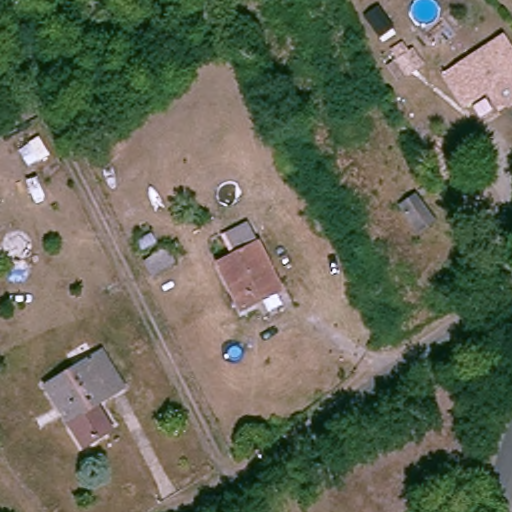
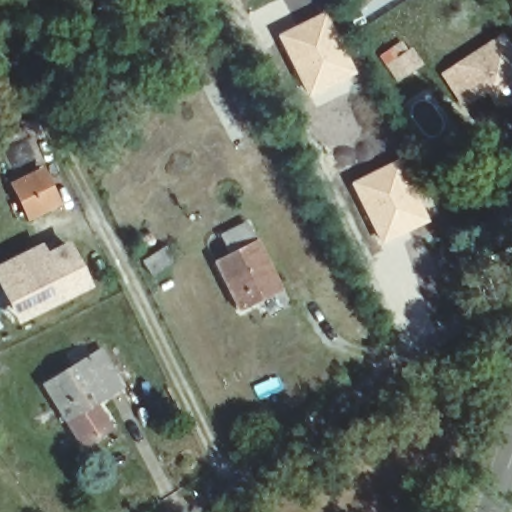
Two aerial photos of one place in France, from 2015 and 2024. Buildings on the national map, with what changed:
new [(326,11),(357,75),(307,99),(275,35),(326,11)]
unchanged [(505,93),(498,81),(470,97),(449,67),(504,31),(512,43),(512,100),(510,101),(505,93)]
new [(402,40),(408,49),(412,46),(425,65),(396,83),(378,56),(402,40)]
new [(400,157),(430,222),(380,246),(348,183),(400,157)]
new [(60,204),(28,221),(9,184),(42,166),(60,204)]
unchanged [(428,171),(446,200),(435,209),(414,180),(428,171)]
unchanged [(260,297),(245,303),(223,256),(235,248),(228,231),(253,220),(279,274),(283,285),(260,297)]
unchanged [(187,241),(191,255),(166,265),(161,251),(187,241)]
new [(15,325),(0,293),(0,265),(41,244),(46,252),(70,242),(92,289),(15,325)]
unchanged [(120,381),(91,401),(107,426),(84,442),(44,383),(98,347),(120,381)]

